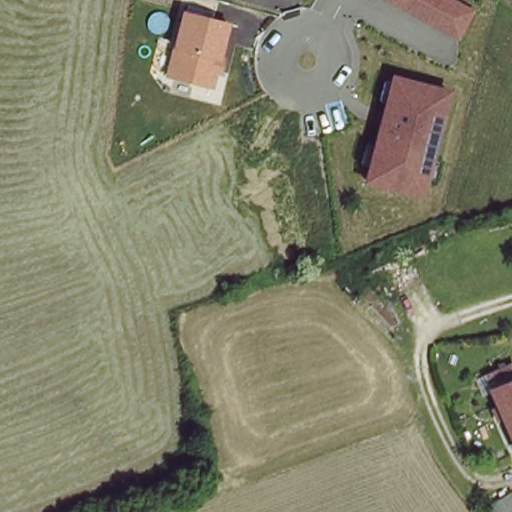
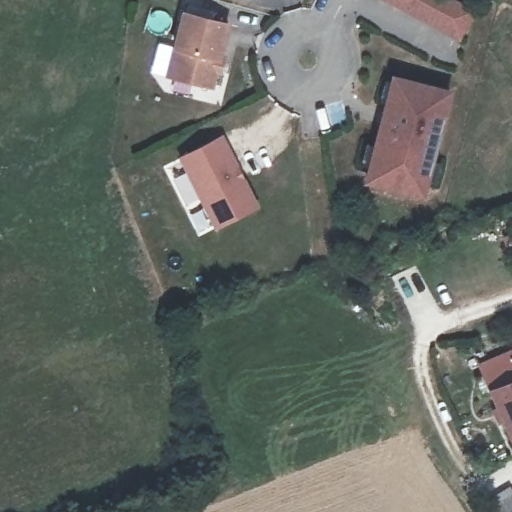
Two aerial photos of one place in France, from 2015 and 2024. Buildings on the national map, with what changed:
unchanged [(458,40),(383,0),(456,0),(474,10),(458,40)]
unchanged [(231,22),(215,89),(164,77),(182,9),(231,22)]
unchanged [(453,89),(423,199),(363,182),(392,74),(453,89)]
new [(223,134),(260,207),(217,230),(180,157),(223,134)]
unchanged [(492,396),(512,386),(512,442),(492,396)]
unchanged [(492,507),(512,498),(512,512),(494,512),(492,507)]

